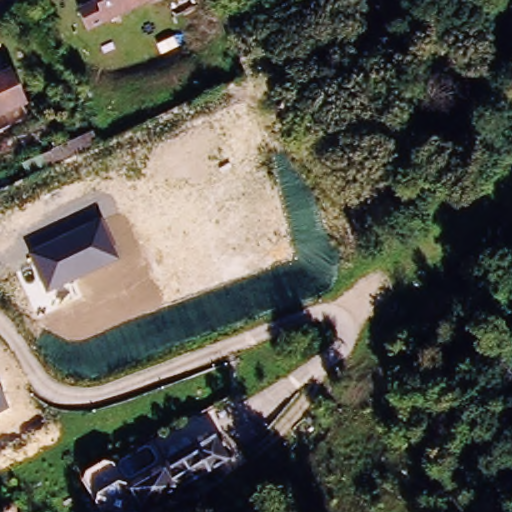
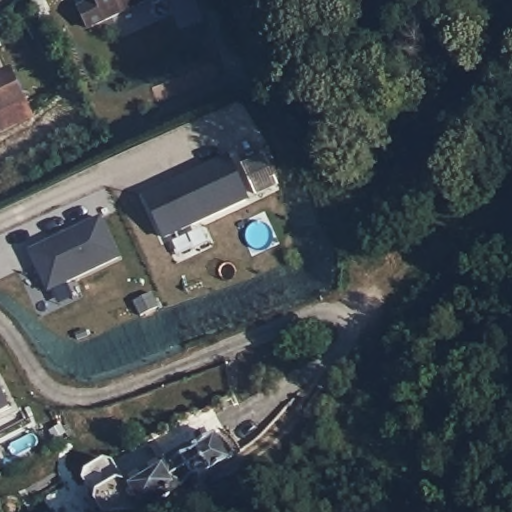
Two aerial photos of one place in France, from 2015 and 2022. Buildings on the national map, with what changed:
unchanged [(91,20),(82,0),(133,0),(91,20)]
unchanged [(24,94),(0,105),(0,65),(9,61),(24,94)]
new [(229,160),(247,199),(164,239),(145,199),(229,160)]
unchanged [(28,252),(100,219),(120,258),(47,293),(28,252)]
new [(135,301),(152,293),(158,307),(141,315),(135,301)]
unchanged [(8,408),(0,412),(0,392),(8,408)]
unchanged [(79,460),(110,443),(126,471),(165,448),(168,452),(196,436),(193,432),(215,420),(230,446),(140,497),(130,501),(122,502),(114,502),(102,501),(95,489),(79,460)]

